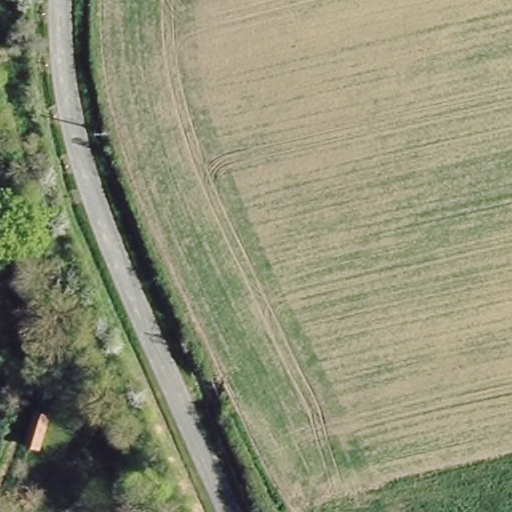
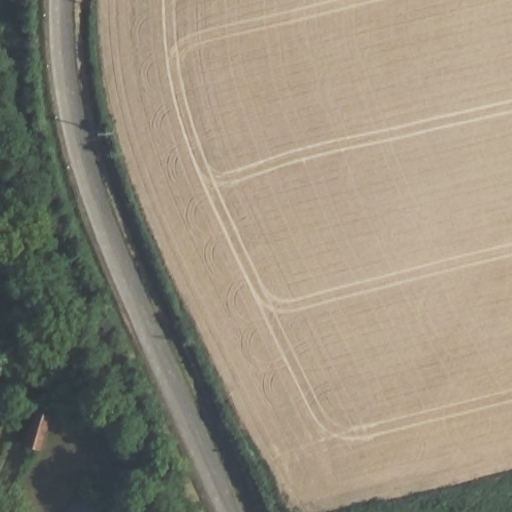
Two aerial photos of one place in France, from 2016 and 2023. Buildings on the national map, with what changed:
unchanged [(35,401),(45,405),(34,442),(23,438),(35,401)]
unchanged [(96,470),(72,424),(100,410),(123,455),(96,470)]

